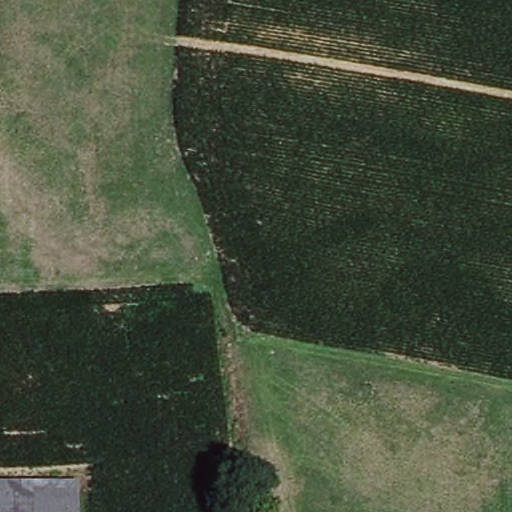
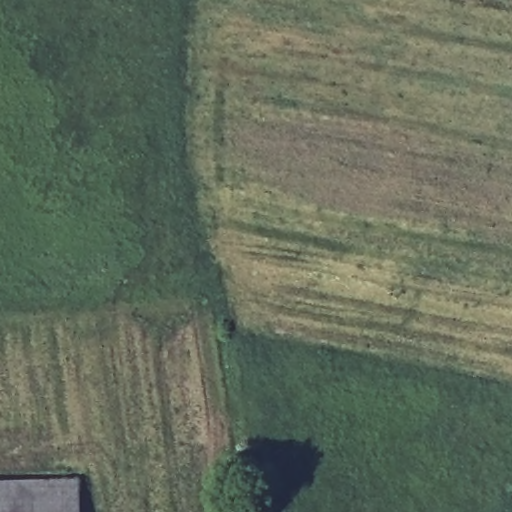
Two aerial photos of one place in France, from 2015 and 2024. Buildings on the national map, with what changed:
unchanged [(76,512),(0,512),(0,482),(73,475),(76,512)]

